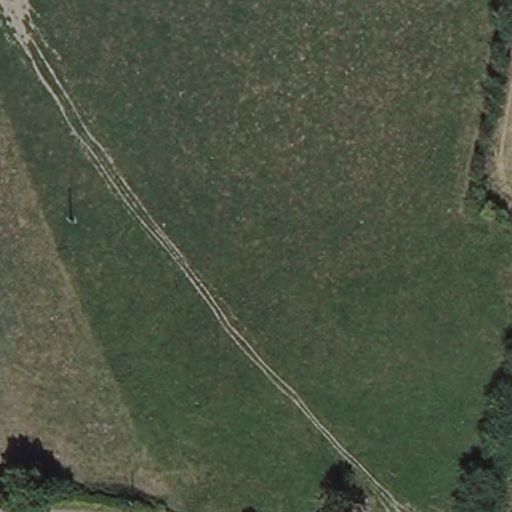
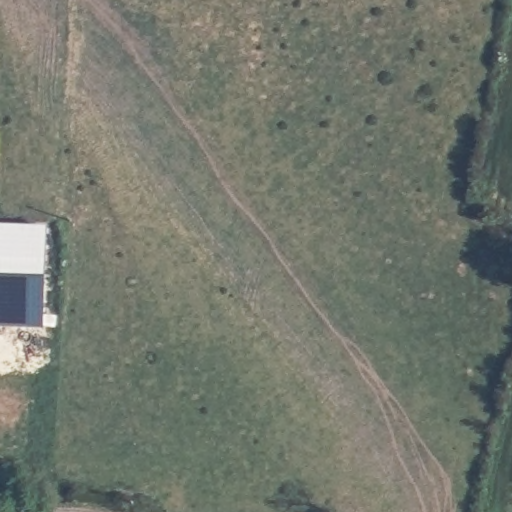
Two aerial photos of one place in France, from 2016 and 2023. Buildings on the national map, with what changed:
new [(44,330),(0,328),(0,224),(47,226),(44,330)]

